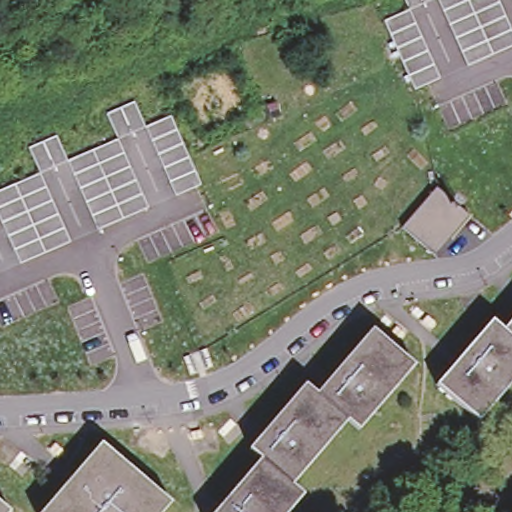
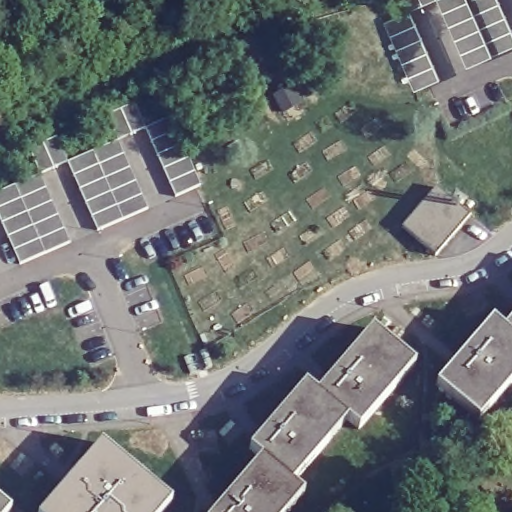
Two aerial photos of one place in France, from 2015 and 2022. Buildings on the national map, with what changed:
unchanged [(412,5),(409,0),(422,0),(412,5)]
unchanged [(445,6),(442,0),(501,0),(506,11),(512,25),(512,41),(493,49),(469,60),(462,46),(457,33),(450,20),(445,6)]
unchanged [(417,18),(424,31),(430,45),(435,59),(442,72),(417,83),(411,70),(405,56),(399,42),(393,29),(387,15),(412,5),(417,18)]
unchanged [(109,115),(123,109),(137,103),(148,129),(135,135),(120,140),(109,115)]
unchanged [(167,170),(160,156),(155,142),(148,129),(174,117),(180,131),(186,145),(192,159),(198,172),(205,186),(179,197),(173,184),(167,170)]
unchanged [(31,150),(45,144),(59,138),(70,163),(56,170),(42,175),(31,150)]
unchanged [(76,177),(70,163),(95,152),(120,140),(127,155),(133,169),(139,182),(145,196),(151,210),(126,221),(100,232),(94,219),(88,205),(82,191),(76,177)]
unchanged [(10,240),(4,225),(0,218),(0,194),(17,186),(42,175),(49,189),(55,203),(60,217),(67,231),(73,245),(47,256),(22,267),(16,254),(10,240)]
unchanged [(470,212),(436,250),(402,222),(436,184),(470,212)]
unchanged [(499,327),(512,312),(512,375),(473,420),(430,382),(486,316),(499,327)]
unchanged [(246,445),(304,381),(314,390),(370,326),(410,362),(354,425),(345,417),(288,480),(302,492),(284,512),(211,512),(260,458),(246,445)]
unchanged [(170,495),(156,512),(38,512),(35,510),(100,435),(170,495)]
unchanged [(10,510),(8,512),(0,512),(0,501),(10,510)]

